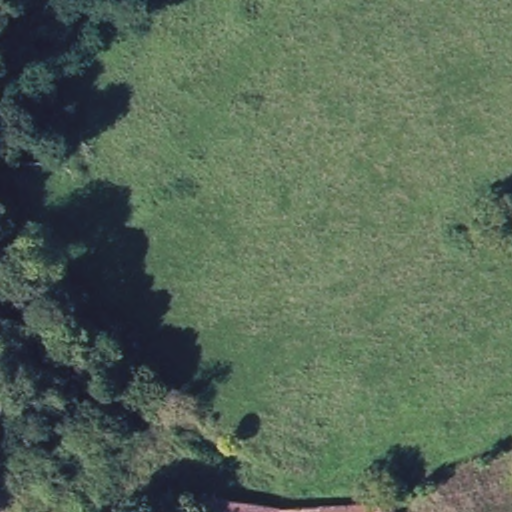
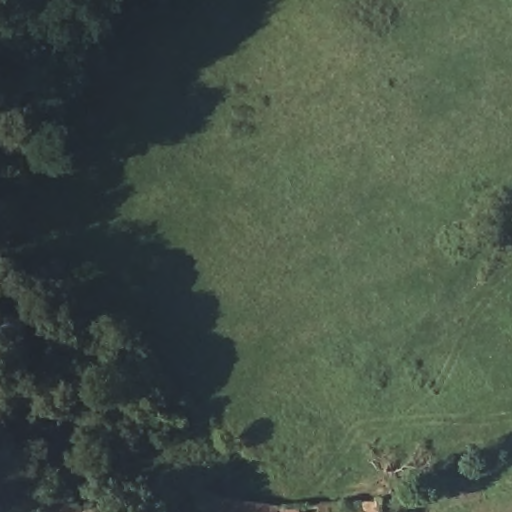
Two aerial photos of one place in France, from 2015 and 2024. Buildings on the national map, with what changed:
unchanged [(278,507),(322,506),(368,503),(392,501),(393,512),(201,512),(202,496),(278,507)]

